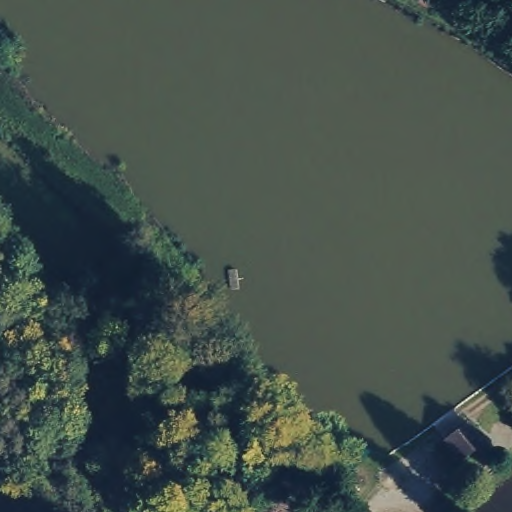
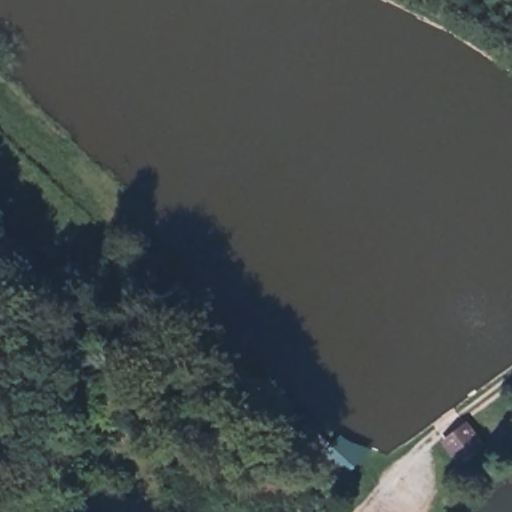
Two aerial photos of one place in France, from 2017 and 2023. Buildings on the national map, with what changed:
unchanged [(484,442),(460,462),(447,446),(470,427),(484,442)]

